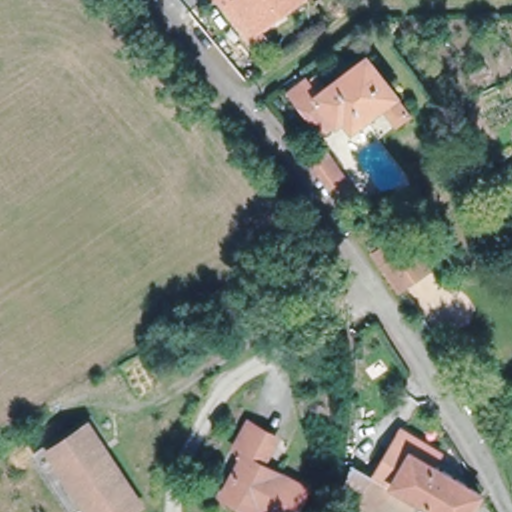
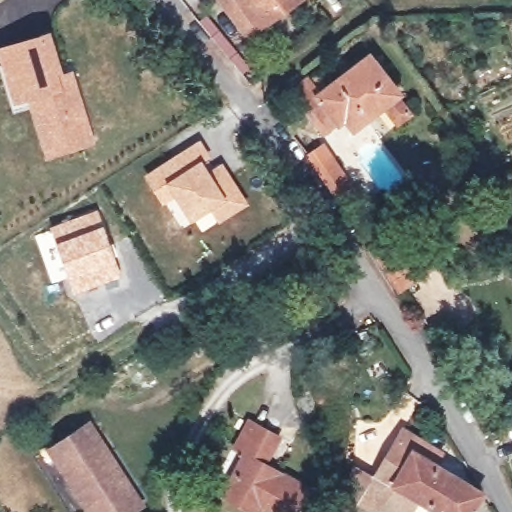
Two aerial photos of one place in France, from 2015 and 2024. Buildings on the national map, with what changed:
unchanged [(242,34),(222,6),(217,0),(292,0),(254,27),(262,38),(250,46),(242,34)]
new [(64,71),(73,69),(95,142),(46,156),(29,99),(14,104),(0,57),(0,46),(52,30),(64,71)]
unchanged [(392,125),(377,105),(349,127),(341,116),(319,132),(287,90),(302,78),(304,80),(311,75),(322,89),(364,56),(392,93),(391,94),(406,114),(392,125)]
new [(199,144),(209,160),(201,165),(207,176),(222,167),(244,202),(221,217),(212,204),(192,215),(162,167),(199,144)]
unchanged [(341,204),(317,169),(308,155),(323,146),(332,160),(355,194),(341,204)]
new [(96,213),(118,275),(76,289),(54,228),(96,213)]
unchanged [(405,235),(411,230),(426,253),(432,263),(427,267),(397,287),(375,254),(393,242),(405,235)]
new [(262,280),(276,302),(242,323),(228,300),(262,280)]
unchanged [(257,511),(225,494),(246,456),(235,451),(251,422),(277,436),(262,464),(309,489),(297,512),(257,512),(257,511)]
unchanged [(137,505),(125,512),(85,512),(45,449),(85,424),(137,505)]
unchanged [(472,512),(440,512),(420,500),(412,512),(376,512),(343,492),(352,466),(374,480),(375,478),(386,460),(402,431),(442,454),(435,465),(482,493),(472,512)]

